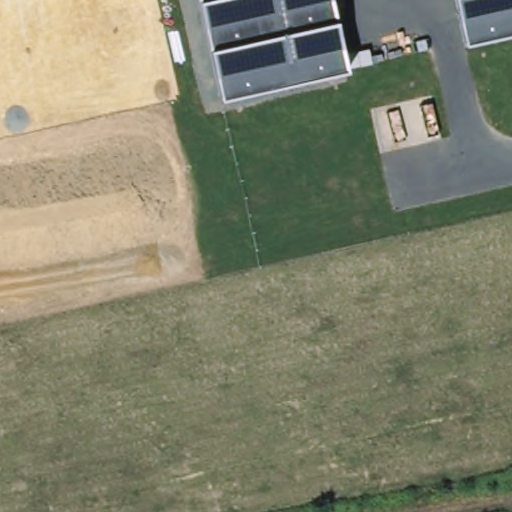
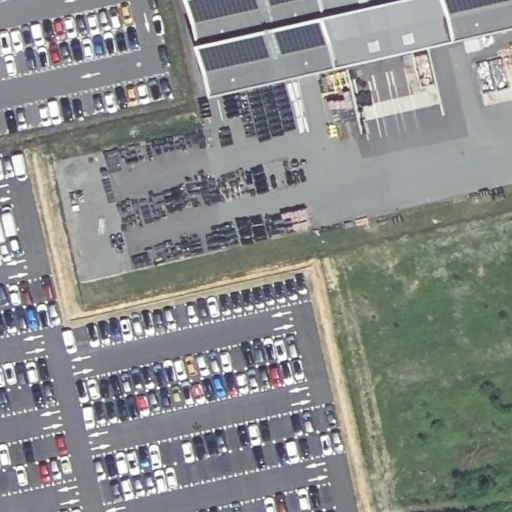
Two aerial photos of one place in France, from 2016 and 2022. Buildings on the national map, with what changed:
unchanged [(220,96),(197,0),(329,0),(345,69),(220,96)]
new [(464,41),(345,69),(329,0),(454,0),(464,41)]
unchanged [(454,0),(512,0),(512,30),(464,41),(454,0)]

